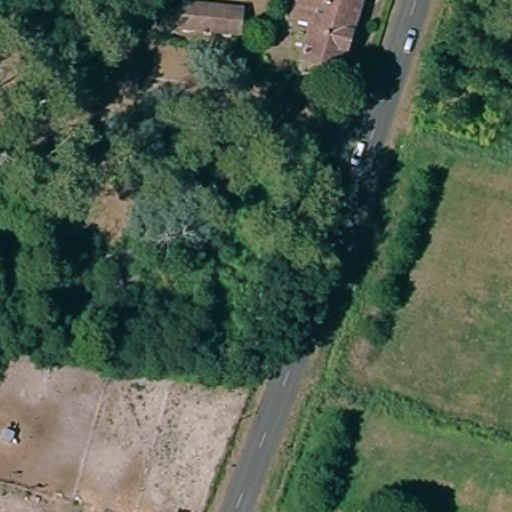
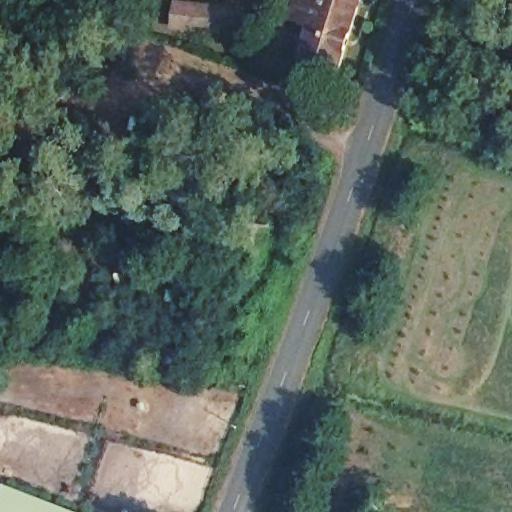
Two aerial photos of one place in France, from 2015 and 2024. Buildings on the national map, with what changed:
unchanged [(288,68),(303,20),(284,15),(289,0),(352,0),(328,80),(288,68)]
unchanged [(233,33),(168,29),(169,7),(234,11),(233,33)]
unchanged [(228,362),(229,352),(231,344),(256,349),(254,365),(228,362)]
new [(76,512),(0,512),(0,496),(4,484),(76,512)]

